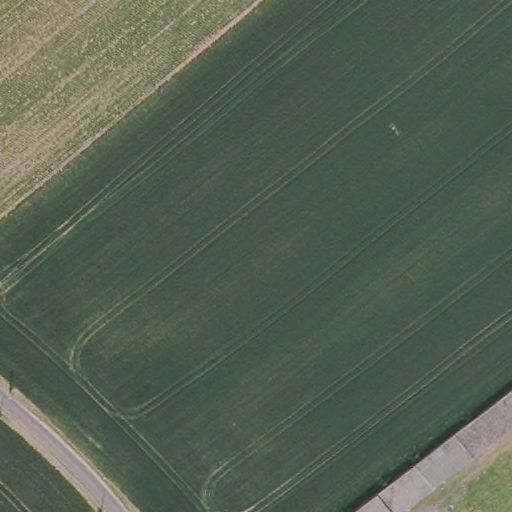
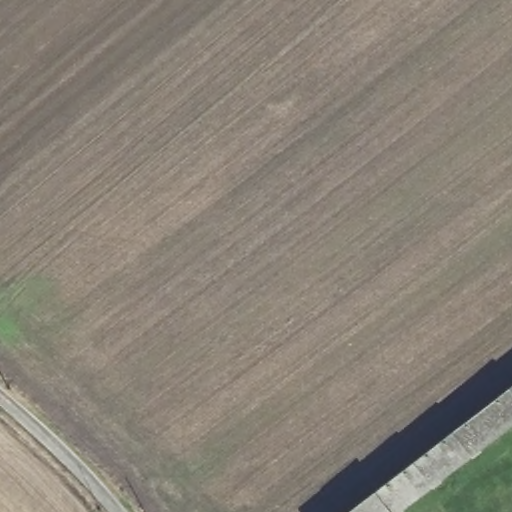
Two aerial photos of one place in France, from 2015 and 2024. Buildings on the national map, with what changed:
unchanged [(387,512),(338,512),(512,379),(512,419),(387,512)]

